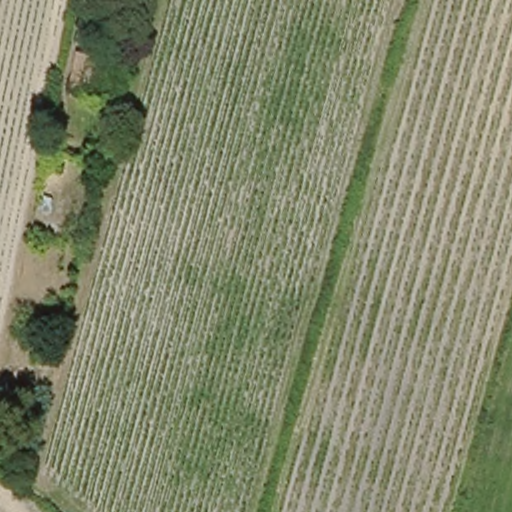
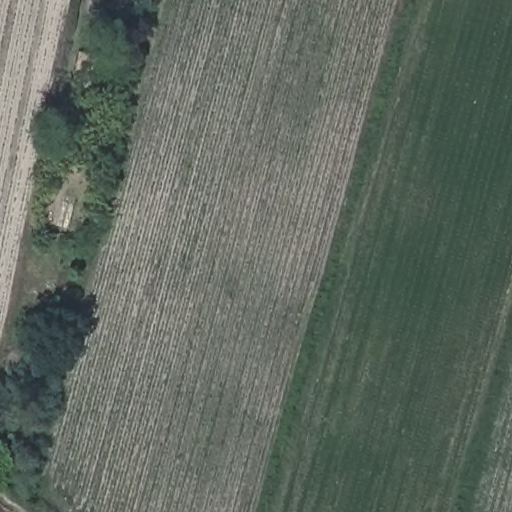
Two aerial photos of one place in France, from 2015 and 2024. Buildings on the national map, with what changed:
unchanged [(106,98),(90,95),(70,91),(79,51),(97,55),(114,58),(106,98)]

